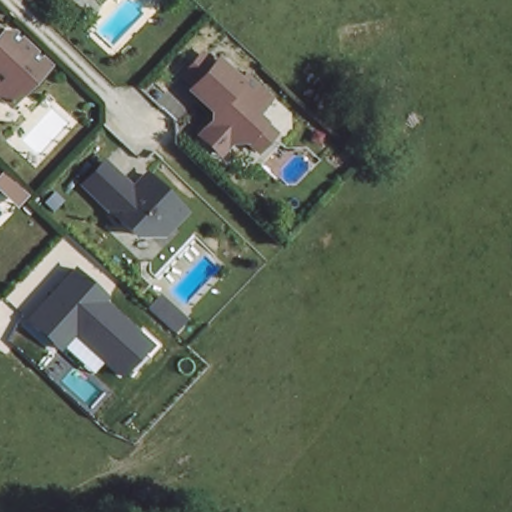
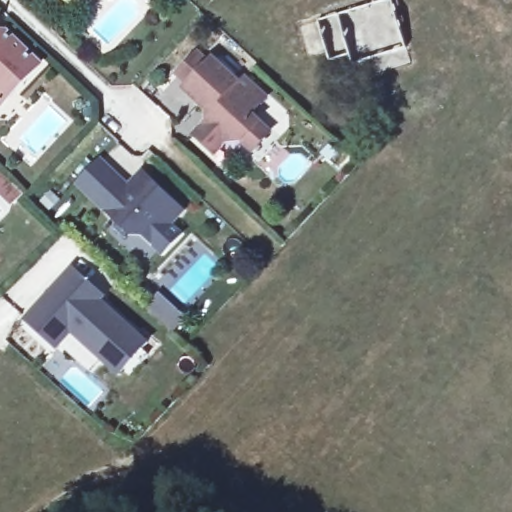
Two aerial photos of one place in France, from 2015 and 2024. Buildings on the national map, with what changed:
new [(374,63),(330,56),(321,20),(391,0),(393,0),(409,55),(409,69),(373,70),(374,63)]
unchanged [(0,43),(5,47),(9,41),(34,65),(10,93),(1,103),(0,102),(0,43)]
unchanged [(196,135),(209,121),(213,121),(213,107),(209,103),(201,104),(186,90),(213,60),(236,81),(242,76),(266,98),(251,115),(270,133),(254,151),(243,140),(228,141),(216,154),(196,135)]
unchanged [(158,230),(121,227),(69,177),(96,150),(125,178),(136,166),(178,203),(158,230)]
unchanged [(70,265),(106,297),(103,303),(149,342),(116,378),(73,335),(58,351),(19,318),(70,265)]
new [(159,291),(184,313),(171,327),(147,305),(159,291)]

